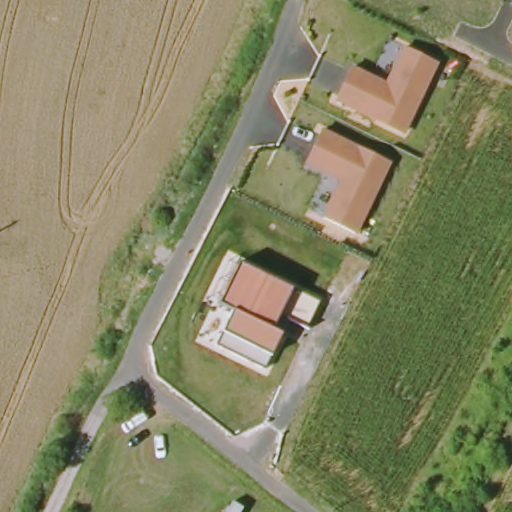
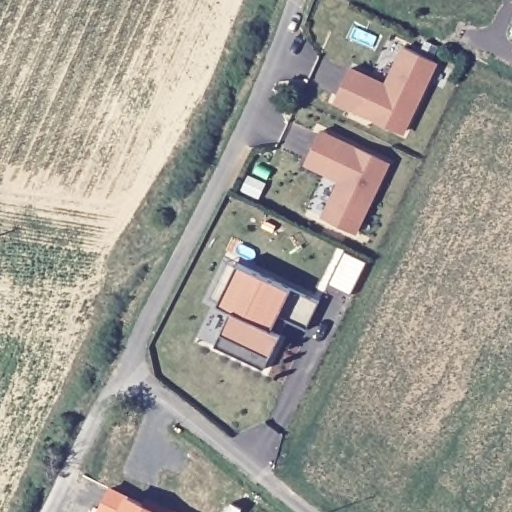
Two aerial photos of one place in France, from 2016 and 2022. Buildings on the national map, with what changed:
unchanged [(334,103),(350,66),(385,83),(402,45),(437,64),(403,134),(334,103)]
unchanged [(320,218),(338,180),(304,162),(321,129),(391,163),(356,236),(320,218)]
unchanged [(292,288),(323,302),(310,328),(280,314),(272,329),(281,334),(270,357),(265,368),(217,344),(223,332),(233,310),(219,304),(240,263),(292,288)]
new [(128,493),(160,509),(163,504),(180,512),(97,512),(96,512),(112,484),(128,493)]

